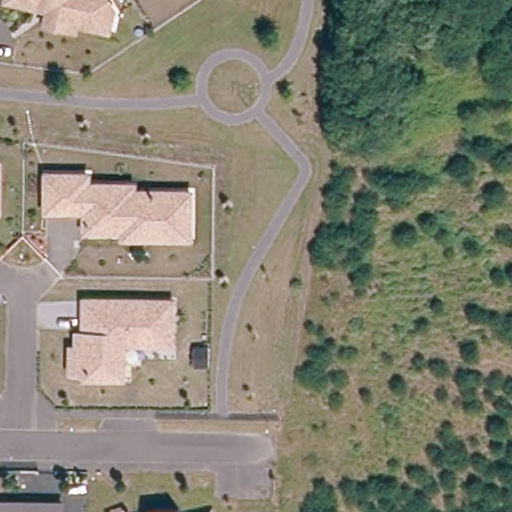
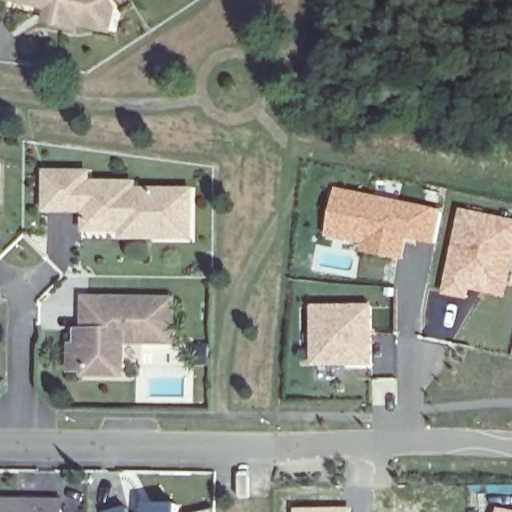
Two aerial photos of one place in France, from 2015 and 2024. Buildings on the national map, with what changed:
unchanged [(76,28),(75,36),(45,29),(49,14),(5,4),(6,0),(102,0),(110,14),(106,35),(76,28)]
unchanged [(127,227),(87,227),(87,219),(87,207),(49,207),(49,171),(89,171),(89,181),(135,182),(135,189),(192,190),(191,235),(157,235),(127,234),(127,227)]
new [(442,216),(435,246),(406,240),(402,260),(384,255),(385,248),(329,236),(338,194),(442,216)]
new [(512,220),(512,273),(506,300),(471,292),(468,302),(440,296),(459,208),(512,220)]
unchanged [(90,331),(91,296),(179,297),(178,340),(129,340),(129,361),(122,368),(77,367),(78,343),(85,344),(85,331),(90,331)]
new [(372,307),(373,367),(311,368),(311,307),(372,307)]
unchanged [(68,504),(68,512),(1,512),(1,502),(29,503),(41,503),(68,504)]
unchanged [(155,505),(180,505),(180,512),(149,512),(149,504),(155,505)]
unchanged [(131,512),(109,512),(130,507),(131,512)]
unchanged [(216,507),(216,512),(197,512),(209,509),(216,507)]
new [(354,512),(295,512),(295,509),(354,508),(354,512)]
new [(512,511),(512,512),(497,512),(498,508),(512,511)]

